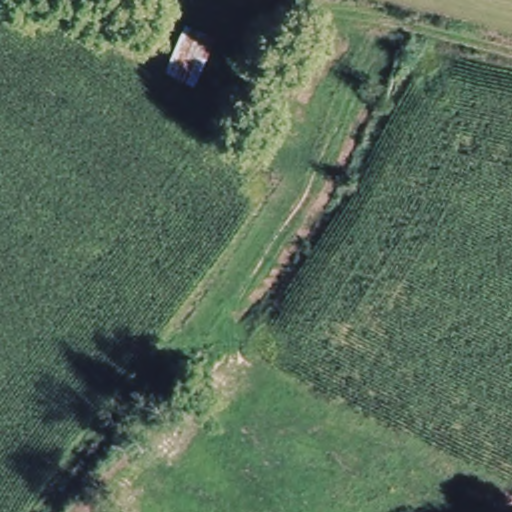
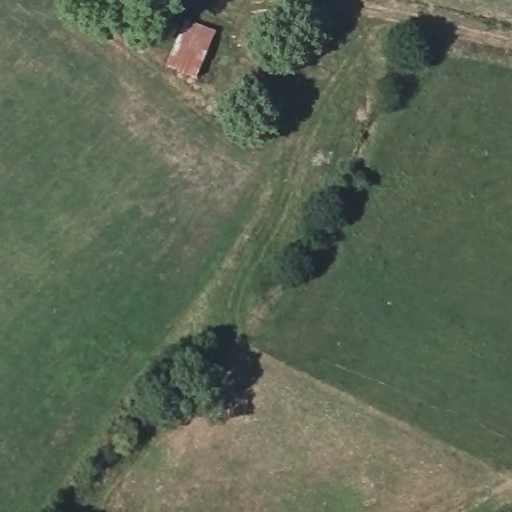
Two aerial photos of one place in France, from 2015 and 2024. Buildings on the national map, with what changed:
unchanged [(168,61),(186,15),(218,27),(199,75),(168,61)]

